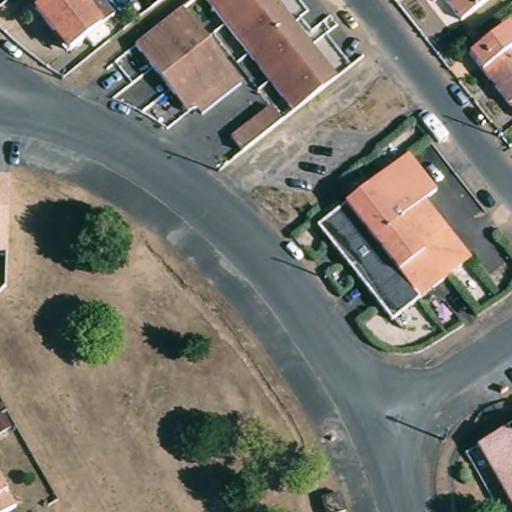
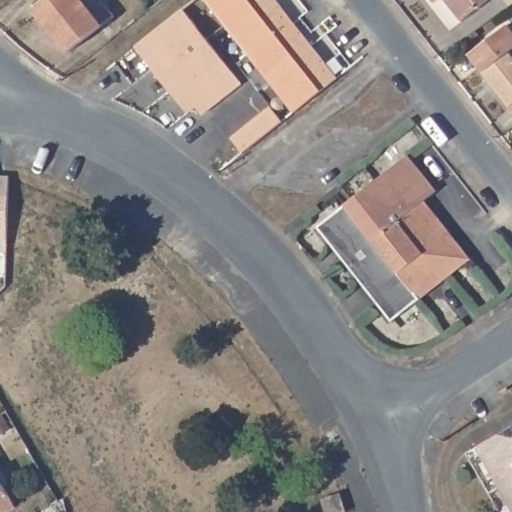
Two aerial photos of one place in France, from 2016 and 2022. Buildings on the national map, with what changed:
unchanged [(110,16),(65,51),(31,9),(42,0),(97,0),(110,16)]
unchanged [(286,19),(335,77),(307,98),(291,112),(242,54),(198,0),(270,0),(286,19)]
unchanged [(457,15),(445,0),(476,0),(457,15)]
unchanged [(179,10),(226,67),(239,83),(200,114),(194,106),(185,112),(179,104),(132,46),(179,10)]
unchanged [(512,54),(512,107),(471,54),(496,34),(512,54)]
unchanged [(272,106),(285,121),(256,143),(245,152),(234,137),(272,106)]
unchanged [(432,190),(420,199),(399,216),(346,258),(342,262),(315,227),(404,156),(432,190)]
unchanged [(14,174),(11,223),(10,243),(0,242),(0,173),(14,174)]
unchanged [(466,258),(388,320),(342,262),(346,258),(399,216),(420,199),(466,258)]
unchanged [(510,430),(512,428),(512,499),(506,502),(471,440),(495,426),(510,430)]
unchanged [(15,503),(0,511),(0,478),(15,503)]
unchanged [(336,496),(341,495),(346,512),(344,512),(328,512),(325,499),(326,499),(336,496)]
unchanged [(512,511),(506,502),(512,499),(512,511)]

